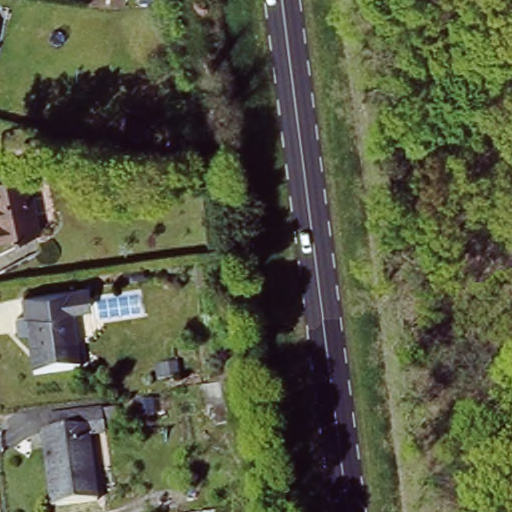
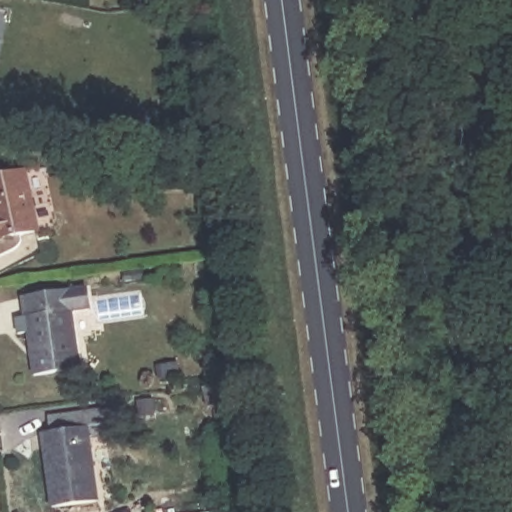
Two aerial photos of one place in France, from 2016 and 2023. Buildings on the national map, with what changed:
unchanged [(0,240),(0,181),(26,174),(40,230),(0,240)]
unchanged [(88,297),(69,300),(78,368),(30,372),(28,351),(32,350),(28,323),(16,322),(14,305),(29,305),(28,293),(88,285),(88,297)]
unchanged [(45,478),(47,477),(44,452),(41,452),(39,434),(48,432),(48,418),(98,410),(100,435),(87,437),(94,501),(47,506),(45,478)]

